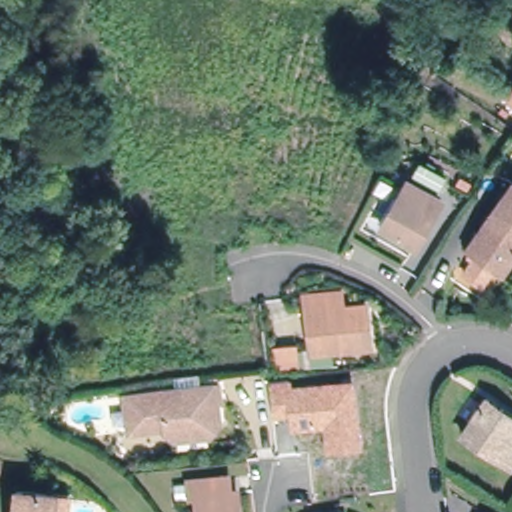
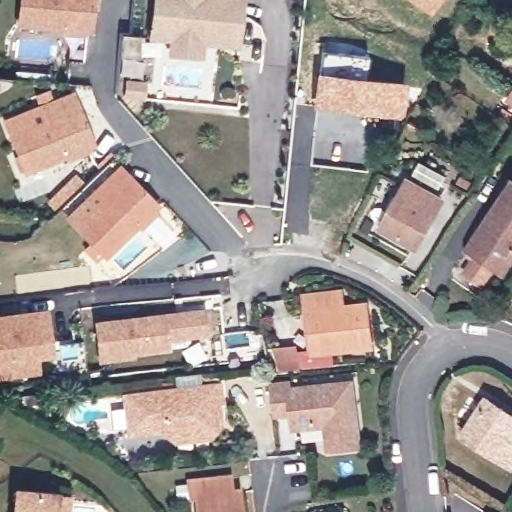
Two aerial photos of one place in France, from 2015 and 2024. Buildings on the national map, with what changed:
new [(15,28),(18,0),(95,0),(93,33),(15,28)]
new [(204,44),(203,58),(167,55),(169,41),(145,38),(151,0),(242,0),(239,48),(204,44)]
new [(410,0),(442,0),(432,15),(410,0)]
new [(401,114),(318,105),(324,51),(367,56),(366,79),(403,84),(401,114)]
new [(127,83),(142,84),(140,99),(125,98),(127,83)]
new [(25,172),(9,131),(45,117),(39,103),(74,91),(94,146),(25,172)]
unchanged [(510,100),(512,97),(512,101),(510,100)]
new [(75,226),(104,199),(94,188),(119,163),(161,205),(106,258),(75,226)]
new [(77,178),(84,185),(66,203),(59,196),(77,178)]
unchanged [(414,247),(382,228),(408,181),(441,200),(414,247)]
unchanged [(470,248),(512,188),(512,257),(503,271),(494,265),(481,285),(464,274),(478,254),(470,248)]
unchanged [(307,333),(302,295),(336,291),(338,307),(362,304),(367,345),(314,352),(309,352),(307,333)]
new [(99,361),(94,320),(205,307),(209,336),(168,341),(169,350),(99,361)]
new [(0,316),(45,311),(50,355),(34,357),(35,371),(0,374),(0,316)]
unchanged [(291,378),(292,384),(356,378),(362,448),(326,451),(323,428),(290,432),(289,416),(273,419),(269,382),(291,378)]
unchanged [(215,421),(207,433),(170,437),(160,429),(159,425),(124,429),(119,391),(214,379),(216,397),(210,398),(211,405),(214,405),(215,421)]
unchanged [(511,467),(463,436),(487,398),(512,414),(512,465),(511,467)]
unchanged [(197,497),(190,498),(189,482),(229,477),(230,492),(238,491),(240,512),(198,512),(197,497)]
unchanged [(53,512),(15,512),(17,490),(55,494),(53,512)]

